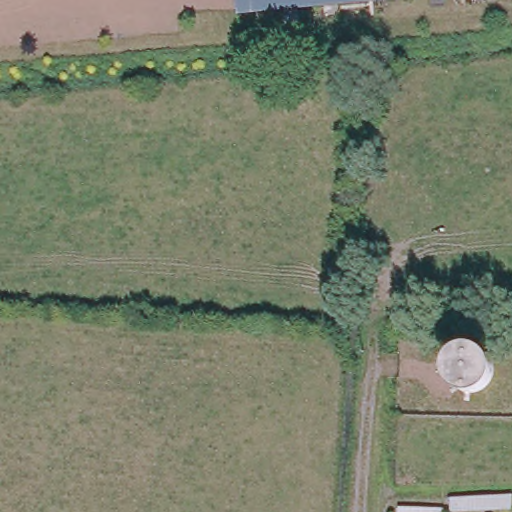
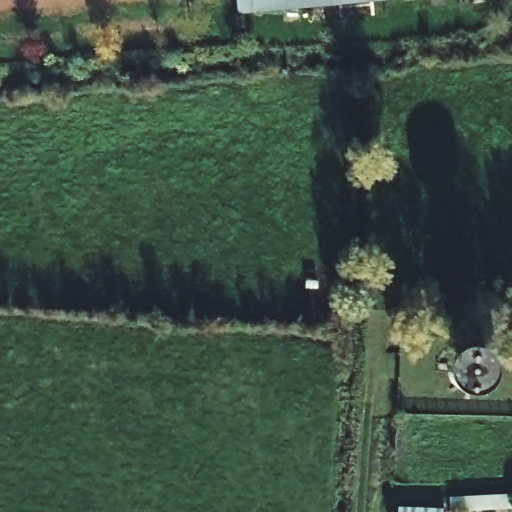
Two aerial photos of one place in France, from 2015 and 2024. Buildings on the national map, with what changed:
unchanged [(235,7),(234,0),(328,0),(235,7)]
unchanged [(438,369),(438,364),(446,364),(446,370),(438,369)]

